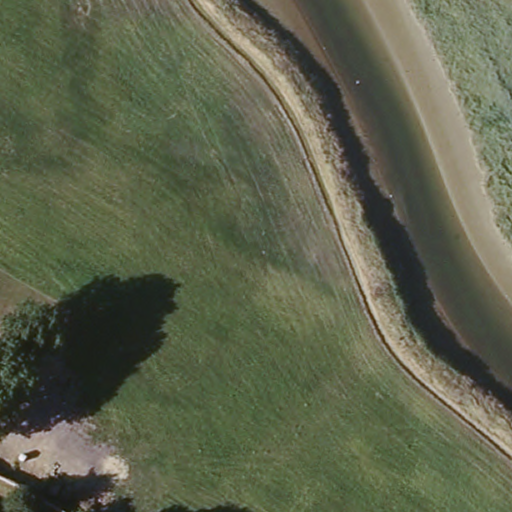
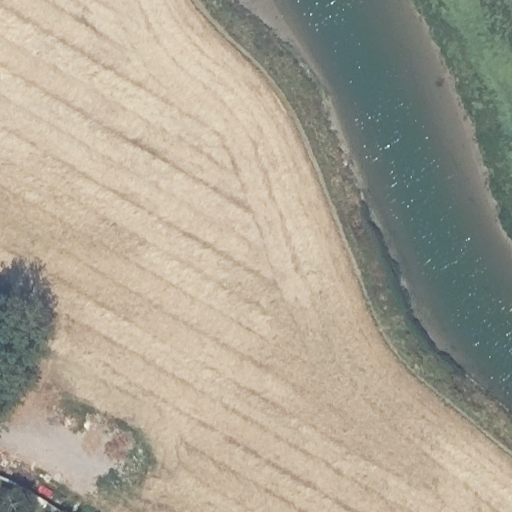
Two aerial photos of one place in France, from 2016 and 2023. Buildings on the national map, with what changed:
[]

